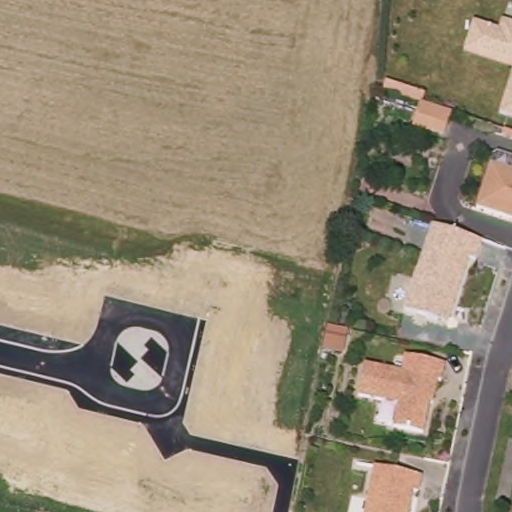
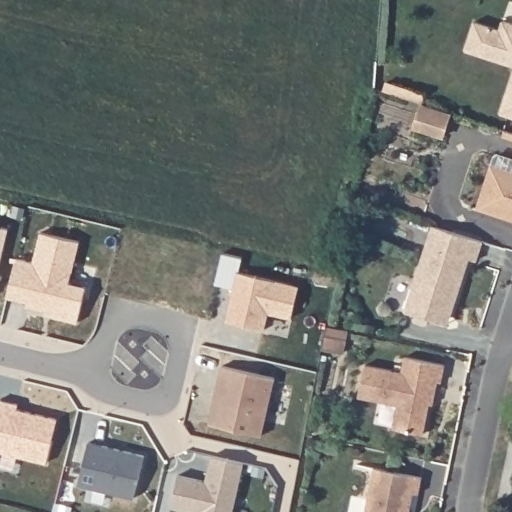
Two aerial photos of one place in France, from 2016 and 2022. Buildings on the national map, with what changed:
unchanged [(501,19),(512,24),(512,71),(461,54),(470,21),(497,30),(501,19)]
unchanged [(512,74),(512,121),(498,116),(512,74)]
unchanged [(438,134),(410,125),(416,106),(445,115),(438,134)]
unchanged [(492,162),(512,169),(512,217),(477,206),(492,162)]
new [(9,227),(0,262),(0,225),(9,227)]
unchanged [(433,225),(482,241),(476,261),(469,258),(447,324),(405,310),(433,225)]
new [(15,258),(33,262),(40,232),(79,241),(69,283),(85,287),(76,322),(52,316),(53,312),(25,306),(26,301),(6,296),(15,258)]
new [(234,286),(215,282),(222,251),(242,255),(239,270),(298,285),(291,317),(268,311),(263,329),(235,321),(226,319),(228,311),(234,286)]
unchanged [(401,373),(404,356),(443,364),(440,382),(431,380),(426,402),(429,402),(422,434),(392,428),(396,405),(357,397),(364,365),(401,373)]
new [(218,383),(222,365),(275,377),(261,435),(209,423),(216,390),(218,383)]
new [(18,404),(17,409),(56,420),(46,462),(0,451),(0,400),(18,404)]
new [(88,441),(144,455),(134,497),(77,484),(88,441)]
new [(178,474),(205,480),(211,455),(244,462),(232,512),(195,512),(170,506),(178,474)]
unchanged [(425,476),(422,493),(417,491),(413,512),(369,512),(378,467),(425,476)]

